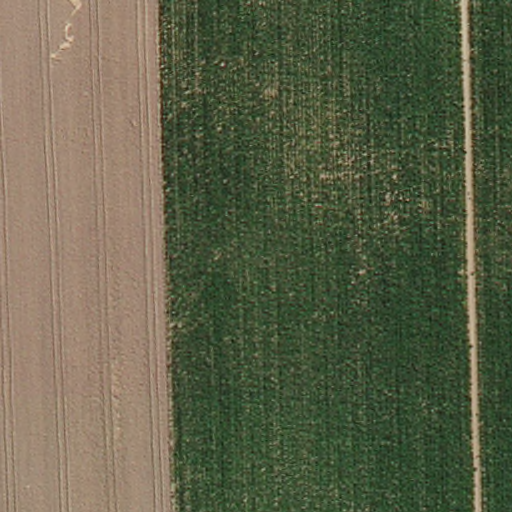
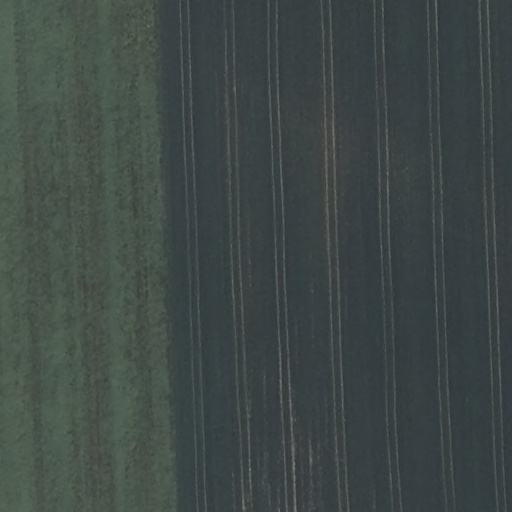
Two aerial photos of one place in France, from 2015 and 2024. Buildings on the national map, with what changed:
[]

